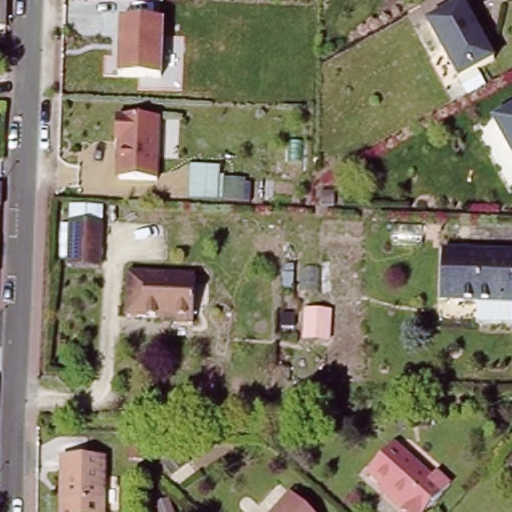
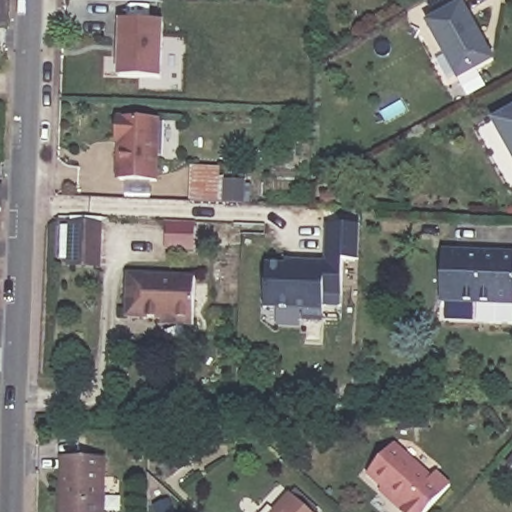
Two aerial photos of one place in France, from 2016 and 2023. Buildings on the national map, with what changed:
unchanged [(0,28),(0,0),(2,0),(1,28),(0,28)]
unchanged [(462,4),(494,60),(459,79),(427,23),(462,4)]
unchanged [(164,17),(161,74),(119,72),(121,16),(164,17)]
unchanged [(512,109),(512,154),(493,120),(512,109)]
unchanged [(160,114),(157,177),(120,175),(121,160),(118,160),(119,137),(116,137),(117,112),(160,114)]
new [(223,202),(223,199),(189,200),(191,164),(220,166),(220,176),(224,176),(224,179),(246,179),(245,202),(223,202)]
unchanged [(71,224),(103,226),(101,270),(70,268),(71,224)]
new [(267,262),(287,263),(288,258),(326,261),(327,225),(360,225),(358,260),(344,259),(344,295),(343,307),(325,307),(325,308),(322,308),(322,317),(302,317),(302,308),(266,307),(267,262)]
unchanged [(512,250),(512,319),(475,318),(476,298),(439,297),(440,247),(512,250)]
unchanged [(156,314),(122,312),(125,271),(175,273),(191,273),(188,322),(172,322),(167,321),(156,321),(156,314)]
unchanged [(512,441),(512,447),(509,444),(512,441)]
unchanged [(377,491),(361,477),(387,448),(425,482),(431,478),(442,489),(421,512),(392,512),(374,495),(377,491)]
unchanged [(57,462),(100,462),(99,512),(57,512),(57,462)]
unchanged [(284,492),(306,512),(266,512),(284,492)]

